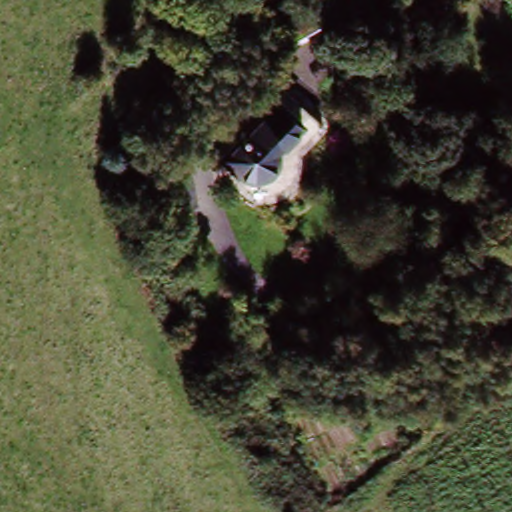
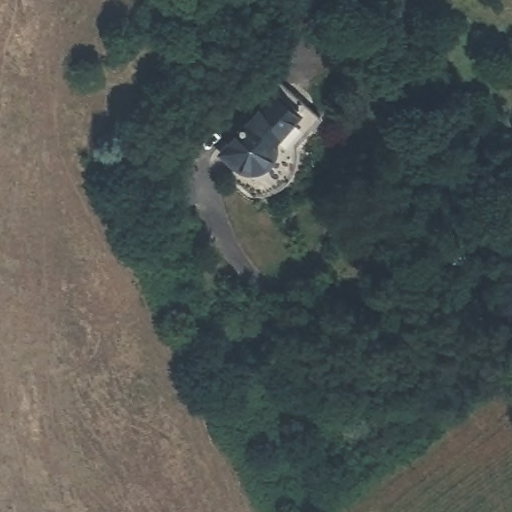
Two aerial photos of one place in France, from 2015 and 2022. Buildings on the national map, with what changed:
unchanged [(300,15),(321,33),(293,64),(273,45),(300,15)]
unchanged [(275,84),(322,127),(283,167),(283,178),(263,194),(246,194),(207,161),(275,84)]
unchanged [(159,156),(176,158),(174,185),(157,184),(159,156)]

